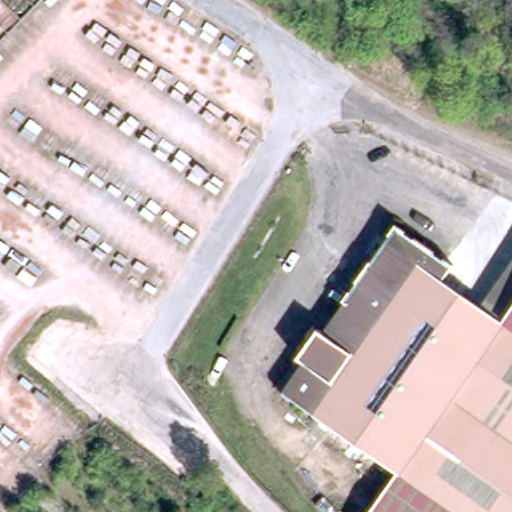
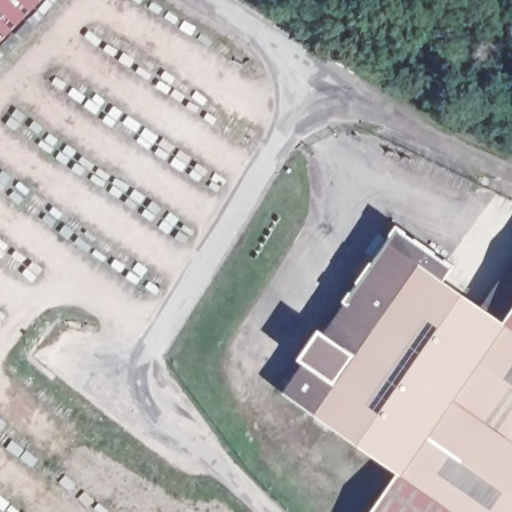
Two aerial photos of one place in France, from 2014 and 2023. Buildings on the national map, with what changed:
new [(0,40),(0,0),(39,0),(0,40)]
unchanged [(355,300),(352,298),(402,225),(453,260),(445,273),(442,277),(453,285),(466,267),(488,282),(512,249),(512,512),(367,512),(400,465),(331,417),(285,385),(327,324),(335,329),(355,300)]
unchanged [(320,433),(273,401),(285,385),(331,417),(320,433)]

